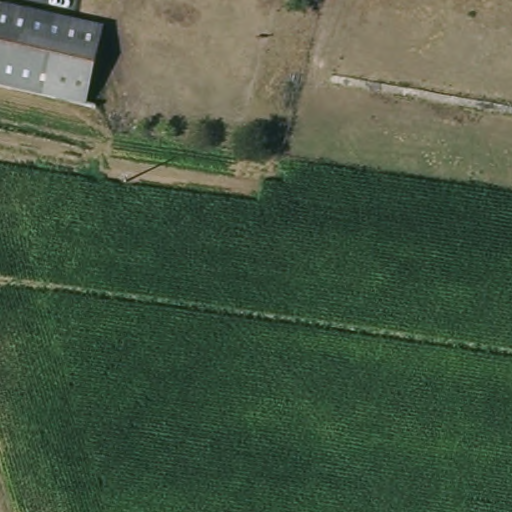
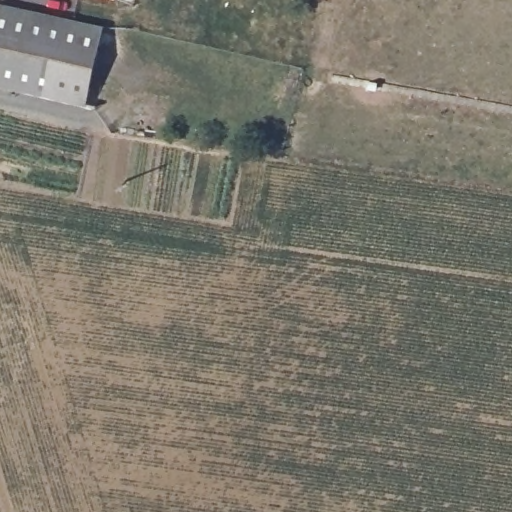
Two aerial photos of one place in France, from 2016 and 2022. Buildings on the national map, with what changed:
unchanged [(0,78),(0,0),(11,0),(107,25),(88,99),(73,94),(26,82),(0,78)]

